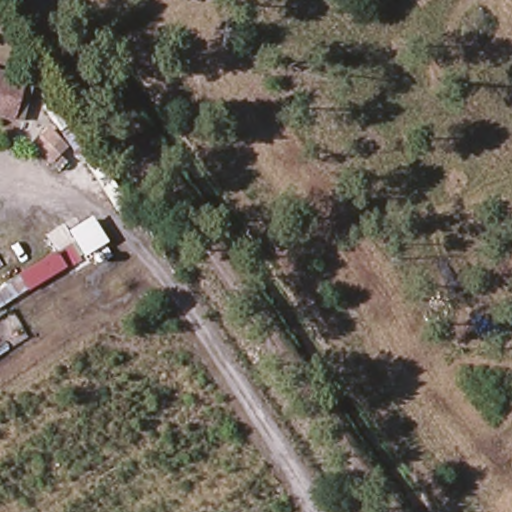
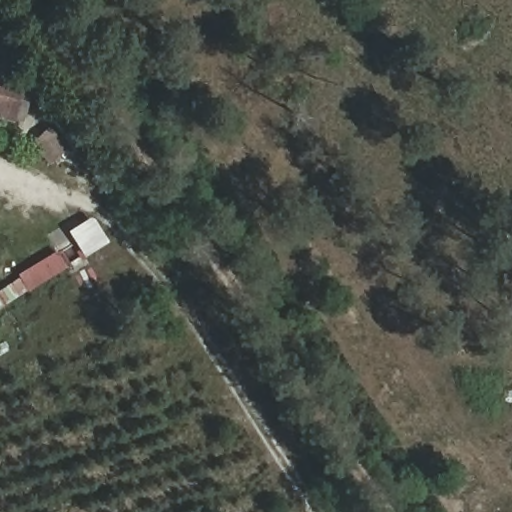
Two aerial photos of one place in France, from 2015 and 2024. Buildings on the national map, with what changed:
unchanged [(14,124),(0,119),(0,72),(27,81),(14,124)]
unchanged [(33,136),(52,123),(42,109),(52,102),(69,128),(74,125),(104,170),(87,177),(70,151),(51,163),(33,136)]
unchanged [(0,289),(20,277),(18,273),(89,231),(100,250),(0,309),(0,289)]

